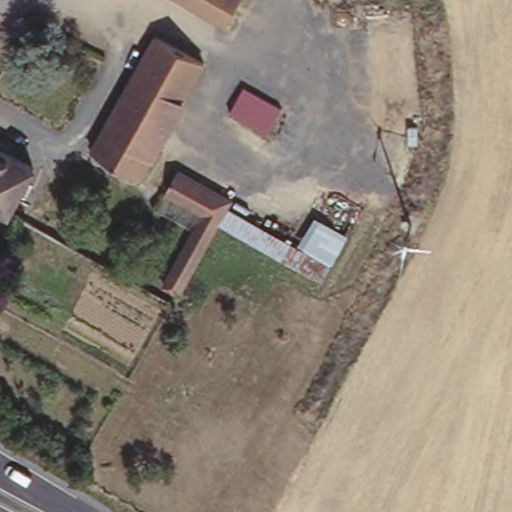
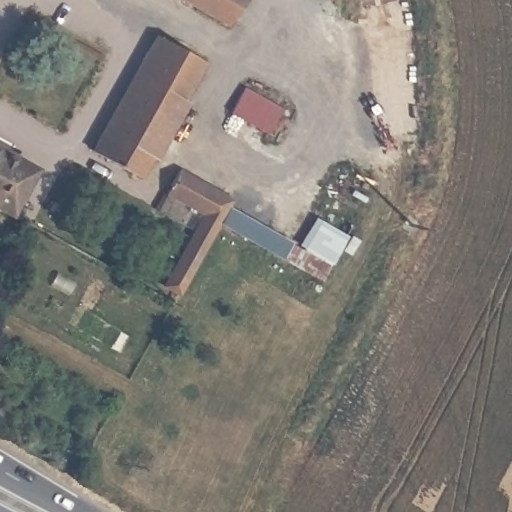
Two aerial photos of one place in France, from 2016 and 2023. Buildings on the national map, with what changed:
unchanged [(188,0),(242,0),(229,23),(188,0)]
unchanged [(209,60),(140,177),(95,150),(163,33),(209,60)]
unchanged [(247,86),(285,108),(275,132),(232,109),(247,86)]
unchanged [(36,166),(9,212),(0,208),(0,146),(36,166)]
unchanged [(164,279),(203,211),(167,191),(181,166),(233,197),(227,208),(326,268),(320,279),(220,221),(179,290),(164,279)]
unchanged [(289,245),(313,203),(343,219),(337,229),(345,233),(326,268),(289,245)]

